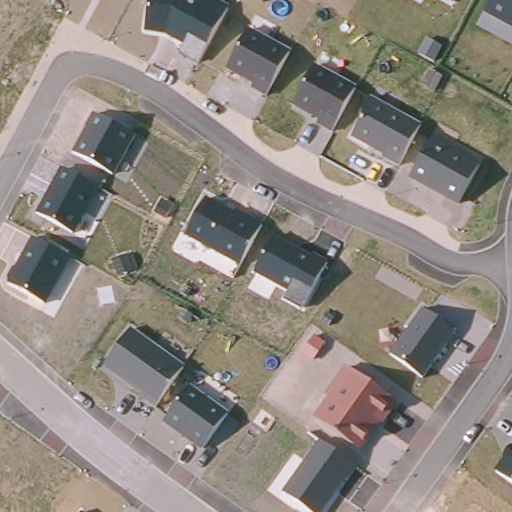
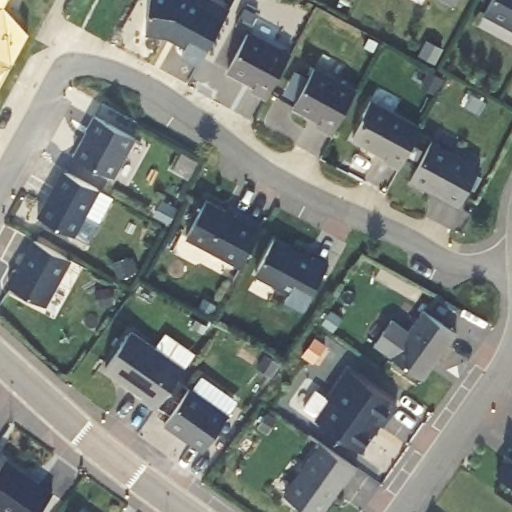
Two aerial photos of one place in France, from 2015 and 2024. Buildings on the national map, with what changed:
new [(28,31),(0,83),(0,0),(5,0),(3,3),(28,31)]
unchanged [(150,0),(213,0),(230,10),(198,67),(180,57),(185,48),(166,36),(145,34),(150,0)]
unchanged [(442,0),(457,0),(453,6),(442,0)]
unchanged [(491,0),(512,0),(512,30),(483,14),(491,0)]
unchanged [(227,71),(250,30),(291,54),(266,99),(250,91),(253,86),(227,71)]
unchanged [(292,108),(315,67),(355,89),(332,135),(316,127),(318,123),(292,108)]
unchanged [(421,126),(398,167),(384,160),(385,159),(351,140),(365,119),(362,115),(372,98),(421,126)]
unchanged [(135,137),(114,176),(73,155),(93,116),(135,137)]
unchanged [(481,163),(458,207),(408,179),(433,135),(481,163)]
unchanged [(98,188),(74,236),(37,215),(61,169),(98,188)]
unchanged [(235,215),(237,213),(261,226),(240,268),(185,238),(205,199),(235,215)]
unchanged [(313,254),(328,262),(303,310),(285,300),(287,293),(254,275),(275,236),(312,255),(313,254)]
unchanged [(70,259),(45,305),(8,285),(7,280),(12,270),(16,268),(32,239),(70,259)]
unchanged [(455,332),(422,379),(390,356),(422,310),(455,332)]
unchanged [(185,367),(155,408),(141,398),(143,396),(104,369),(131,329),(185,367)]
unchanged [(325,396),(345,367),(397,402),(361,452),(313,420),(328,399),(325,396)]
unchanged [(204,373),(240,399),(230,413),(202,451),(163,423),(170,414),(165,410),(185,382),(190,385),(194,387),(204,373)]
unchanged [(356,466),(323,512),(308,512),(282,494),(320,442),(356,466)]
unchanged [(512,448),(512,485),(495,472),(512,448)]
new [(5,460),(52,494),(39,512),(3,512),(0,510),(0,467),(5,460)]

